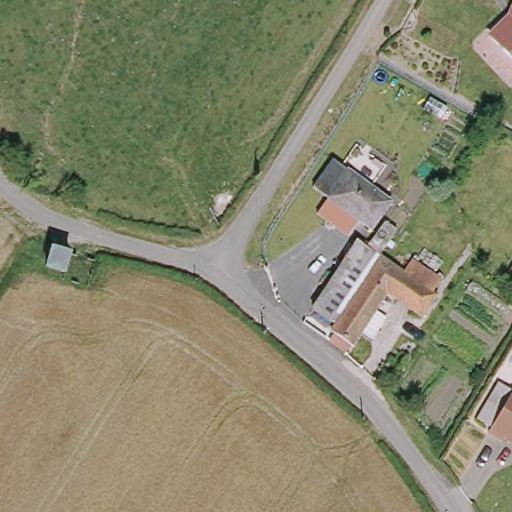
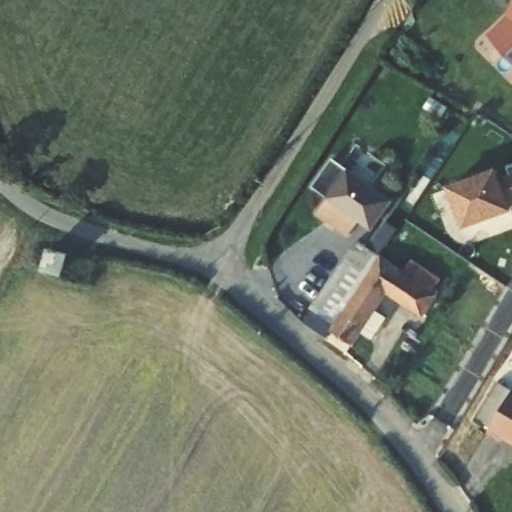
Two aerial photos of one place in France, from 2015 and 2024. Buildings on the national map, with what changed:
unchanged [(509,19),(512,11),(512,64),(488,39),(509,19)]
unchanged [(325,213),(332,203),(337,198),(325,190),(342,164),(344,165),(348,159),(354,163),(349,171),(393,201),(377,224),(365,216),(362,222),(354,233),(325,213)]
new [(499,183),(512,178),(512,209),(465,227),(452,190),(496,174),(499,183)]
unchanged [(322,315),(357,249),(370,257),(383,236),(396,244),(387,258),(340,330),(322,315)]
unchanged [(380,344),(367,337),(354,360),(331,343),(340,330),(387,258),(445,294),(429,319),(392,296),(381,313),(393,321),(380,344)]
unchanged [(512,461),(501,456),(500,459),(485,451),(487,446),(472,438),(492,399),(507,407),(507,406),(512,408),(512,461)]

